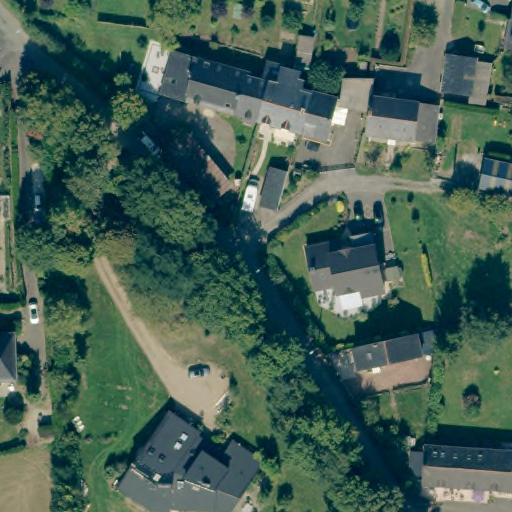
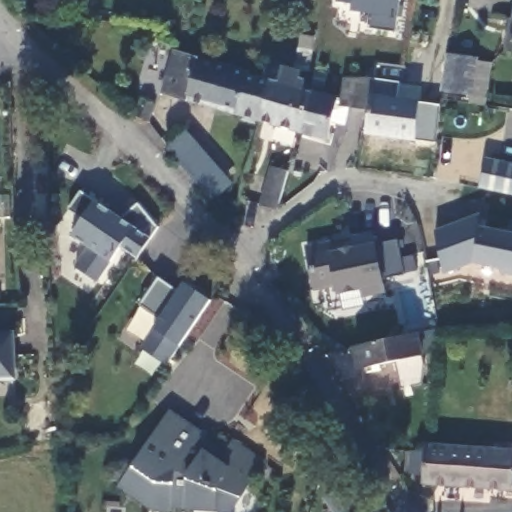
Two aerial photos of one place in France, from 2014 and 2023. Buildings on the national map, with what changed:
unchanged [(507,35),(511,35),(512,32),(512,54),(505,53),(507,35)]
unchanged [(312,60),(300,58),(303,33),(316,35),(312,60)]
unchanged [(171,52),(172,50),(246,72),(245,74),(260,78),(265,62),(273,64),(258,119),(160,91),(171,52)]
unchanged [(465,91),(437,87),(443,54),(470,57),(470,60),(486,62),(480,106),(463,104),(465,91)]
unchanged [(258,119),(273,64),(296,70),(295,76),(301,78),(300,85),(308,88),(298,130),(258,119)]
unchanged [(345,101),(342,119),(329,117),(325,137),(298,130),(308,88),(339,97),(342,78),(371,78),(370,94),(436,101),(435,139),(365,134),(369,101),(345,101)]
unchanged [(149,116),(133,110),(137,99),(139,96),(142,97),(155,102),(149,116)]
unchanged [(227,177),(210,191),(174,147),(190,133),(227,177)]
unchanged [(512,195),(482,189),(488,160),(512,165),(512,195)]
unchanged [(268,205),(276,166),(295,170),(286,209),(268,205)]
new [(75,267),(89,248),(71,235),(82,220),(68,211),(81,191),(96,201),(125,219),(137,205),(159,228),(150,240),(135,229),(110,265),(99,283),(75,267)]
new [(479,215),(483,228),(510,232),(511,220),(512,220),(512,278),(500,275),(500,269),(472,264),(444,275),(435,231),(479,215)]
unchanged [(381,286),(360,291),(358,283),(335,287),(333,278),(311,283),(303,241),(335,234),(337,245),(350,243),(347,231),(368,226),(381,286)]
new [(141,348),(154,327),(158,318),(141,306),(160,278),(179,292),(185,283),(211,301),(180,345),(166,366),(141,348)]
unchanged [(14,334),(15,379),(0,380),(0,335),(14,334)]
unchanged [(415,337),(420,356),(357,369),(353,350),(415,337)]
unchanged [(169,504),(164,510),(151,506),(149,509),(116,487),(163,411),(192,429),(219,445),(226,435),(258,456),(251,467),(226,507),(169,504)]
unchanged [(425,465),(410,464),(411,444),(425,443),(426,438),(512,444),(512,479),(425,475),(425,465)]
new [(342,486),(360,512),(333,512),(324,499),(342,486)]

